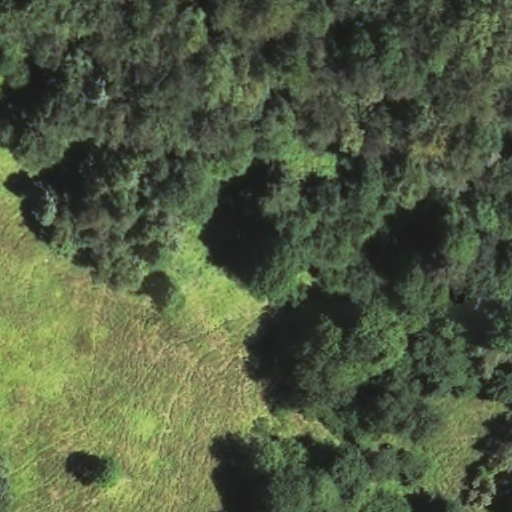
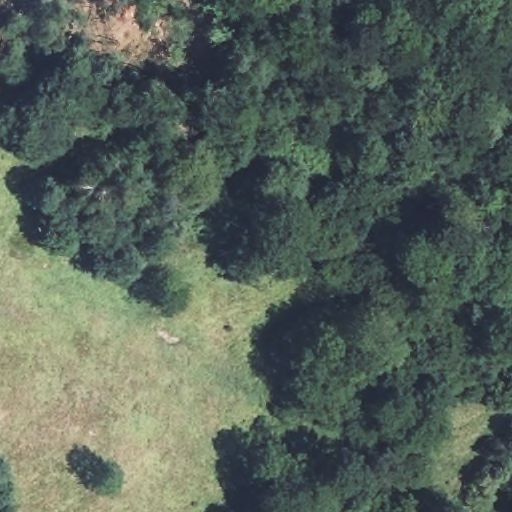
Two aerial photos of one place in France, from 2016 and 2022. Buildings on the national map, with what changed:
[]

